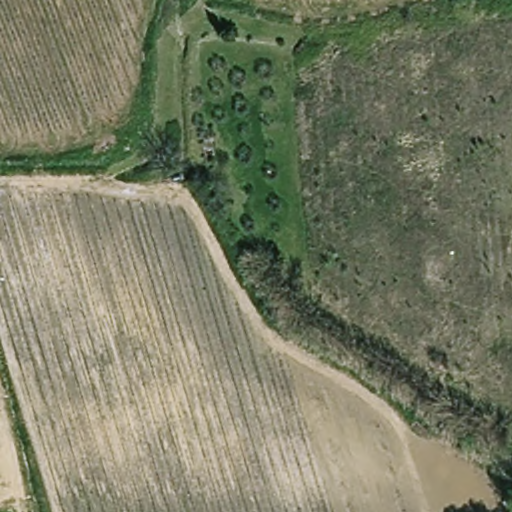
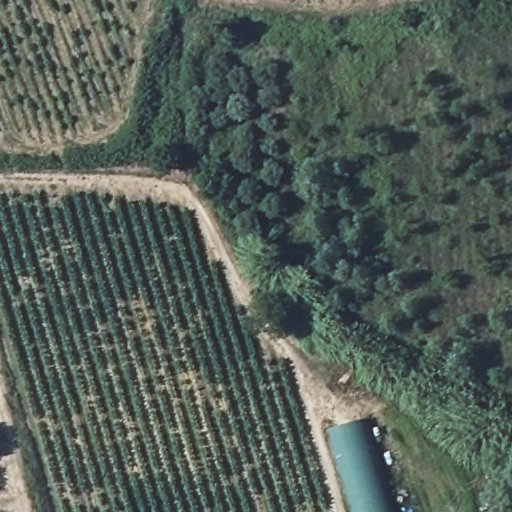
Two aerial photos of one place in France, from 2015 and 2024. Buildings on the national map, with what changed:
new [(362,421),(391,512),(351,512),(326,433),(362,421)]

